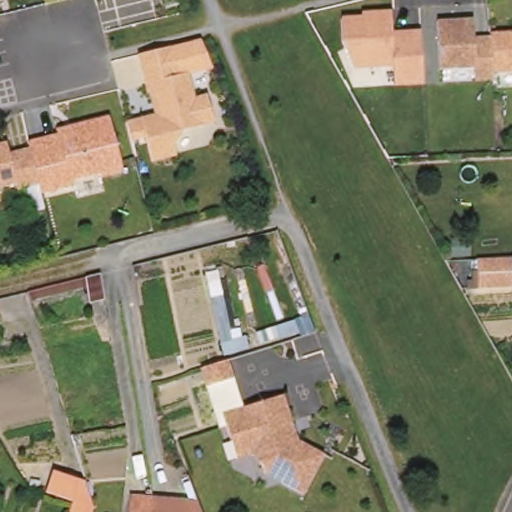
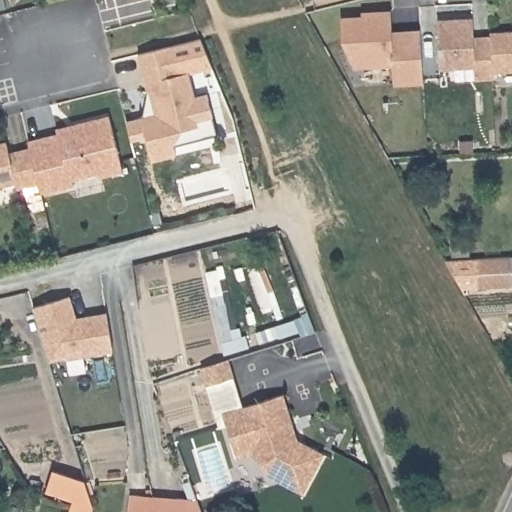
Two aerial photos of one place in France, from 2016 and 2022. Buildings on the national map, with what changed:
unchanged [(397,65),(358,67),(347,40),(346,18),(367,17),(367,13),(396,11),(397,32),(425,30),(426,52),(428,83),(411,84),(399,85),(397,65)]
unchanged [(477,15),(478,32),(495,31),(497,68),(497,75),(479,75),(479,64),(444,65),(441,16),(477,15)]
unchanged [(497,68),(495,31),(495,27),(512,27),(512,67),(497,68)]
unchanged [(140,53),(171,45),(178,74),(189,71),(195,96),(207,94),(214,122),(183,130),(175,145),(177,155),(154,160),(148,136),(133,140),(129,126),(128,120),(143,116),(156,113),(151,90),(149,90),(140,53)]
unchanged [(59,127),(78,122),(111,115),(125,170),(104,175),(103,171),(75,178),(76,184),(44,191),(43,189),(41,182),(32,146),(31,141),(31,140),(60,132),(59,127)]
unchanged [(11,151),(32,146),(41,182),(20,187),(18,181),(0,185),(0,142),(9,140),(11,151)]
unchanged [(498,255),(512,255),(512,285),(482,286),(481,256),(498,255)]
unchanged [(100,280),(106,306),(93,310),(86,283),(100,280)]
unchanged [(0,316),(0,304),(3,303),(6,315),(0,316)]
new [(76,325),(84,323),(106,320),(113,357),(70,365),(66,363),(52,367),(39,312),(71,304),(76,325)]
unchanged [(237,442),(230,422),(226,410),(247,402),(287,390),(302,437),(329,451),(309,491),(271,471),(268,462),(257,451),(242,456),(237,442)]
unchanged [(45,491),(52,470),(86,481),(91,508),(90,512),(66,512),(70,500),(45,491)]
unchanged [(153,495),(199,496),(203,512),(128,512),(131,493),(153,495)]

